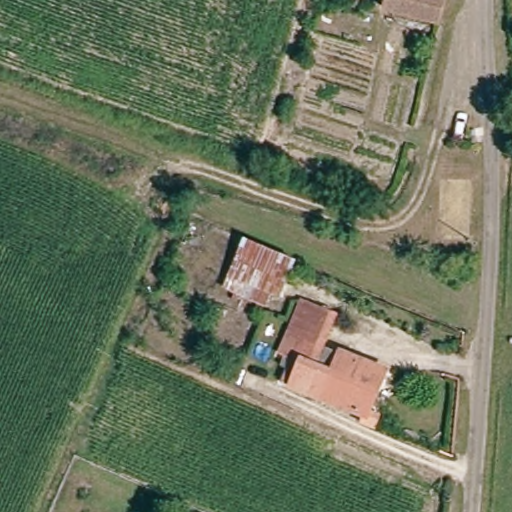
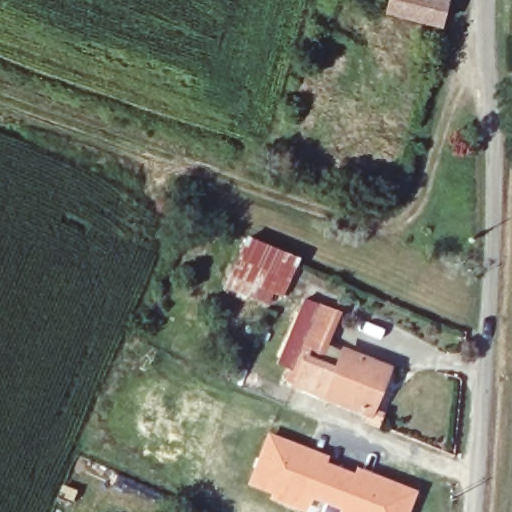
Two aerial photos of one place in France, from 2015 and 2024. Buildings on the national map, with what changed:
unchanged [(432,21),(386,7),(388,0),(439,0),(432,21)]
unchanged [(282,299),(276,296),(268,306),(222,291),(230,274),(245,237),(300,260),(282,299)]
unchanged [(324,345),(295,333),(310,297),(338,308),(324,345)]
unchanged [(340,374),(350,353),(390,371),(370,417),(294,385),(306,358),(340,374)]
new [(329,456),(327,462),(352,472),(355,465),(417,491),(409,512),(337,512),(338,511),(312,500),(306,512),(302,512),(267,498),(268,495),(247,486),(267,432),(329,456)]

